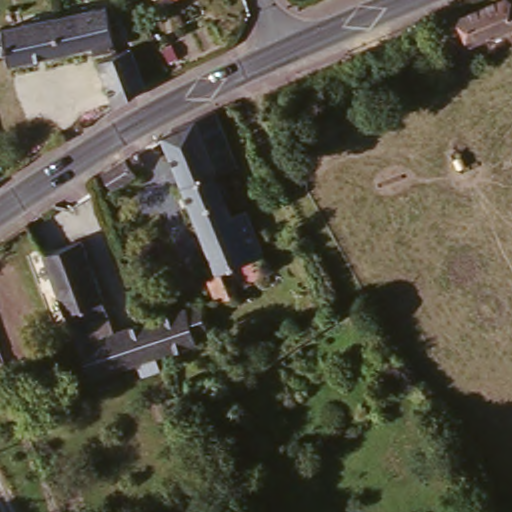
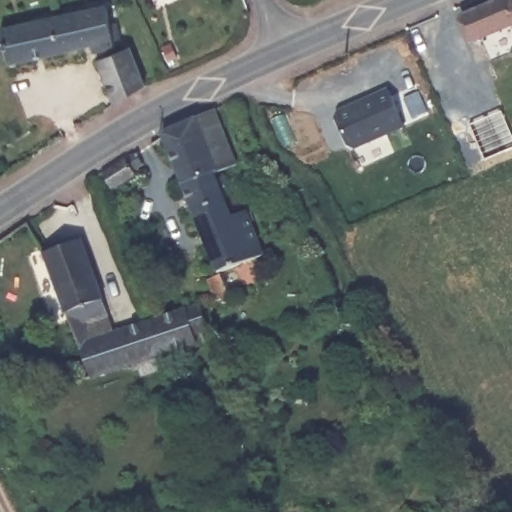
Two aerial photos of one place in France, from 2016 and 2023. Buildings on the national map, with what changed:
unchanged [(1,29),(1,27),(56,13),(102,0),(106,16),(111,38),(112,41),(88,48),(87,40),(6,62),(4,52),(0,53),(0,30),(1,29)]
unchanged [(459,18),(500,1),(500,5),(512,0),(512,26),(467,44),(459,18)]
unchanged [(95,58),(115,50),(124,46),(142,83),(113,100),(95,58)]
new [(383,89),(399,125),(349,148),(343,146),(331,119),(333,111),(383,89)]
unchanged [(224,173),(202,182),(204,188),(213,184),(221,204),(215,207),(222,222),(238,216),(256,260),(211,279),(152,147),(150,142),(201,119),(224,173)]
unchanged [(118,164),(134,156),(140,169),(131,175),(135,181),(113,193),(101,174),(118,164)]
unchanged [(152,321),(162,352),(87,377),(39,251),(78,237),(107,314),(115,333),(152,321)]
unchanged [(202,289),(213,283),(218,297),(225,294),(229,305),(212,313),(202,289)]
unchanged [(152,321),(176,312),(200,306),(203,310),(211,331),(196,336),(197,341),(162,352),(152,321)]

